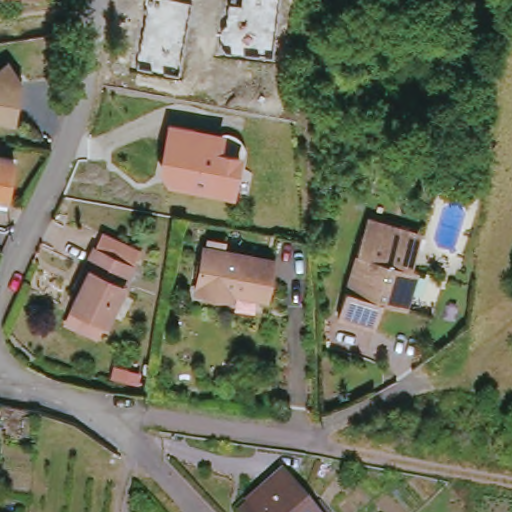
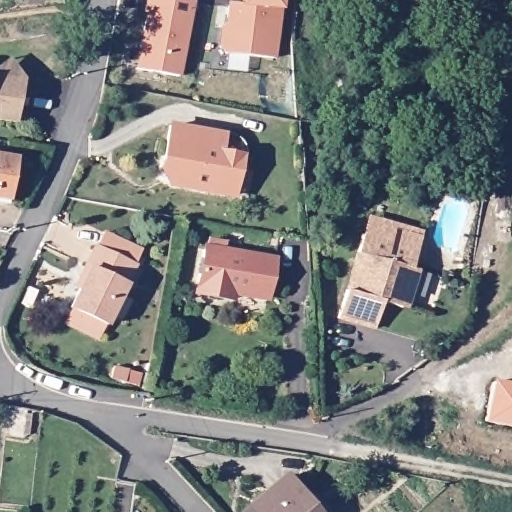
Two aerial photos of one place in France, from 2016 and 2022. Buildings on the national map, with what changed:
new [(146,14),(144,12),(146,0),(188,0),(193,1),(181,77),(136,68),(146,14)]
new [(218,50),(221,26),(226,24),(228,2),(239,5),(240,0),(280,0),(275,59),(218,50)]
unchanged [(0,120),(0,77),(23,81),(16,123),(0,120)]
unchanged [(225,131),(221,150),(243,154),(235,198),(166,185),(158,171),(168,119),(225,131)]
unchanged [(19,198),(3,196),(3,202),(0,202),(0,160),(25,164),(19,198)]
unchanged [(433,187),(419,184),(422,175),(435,177),(433,187)]
unchanged [(376,221),(417,232),(411,253),(416,255),(412,269),(417,271),(410,296),(406,295),(402,307),(383,302),(375,328),(339,318),(354,267),(358,255),(363,236),(371,238),(376,221)]
unchanged [(69,323),(75,309),(73,308),(82,289),(78,287),(85,268),(95,248),(97,249),(103,235),(130,247),(141,252),(133,266),(134,267),(108,323),(105,322),(99,337),(69,323)]
unchanged [(224,292),(223,298),(198,295),(206,250),(274,261),(268,299),(224,292)]
unchanged [(0,435),(0,405),(26,409),(21,438),(0,435)]
unchanged [(285,477),(314,512),(244,512),(285,477)]
unchanged [(323,505),(329,512),(314,512),(323,505)]

